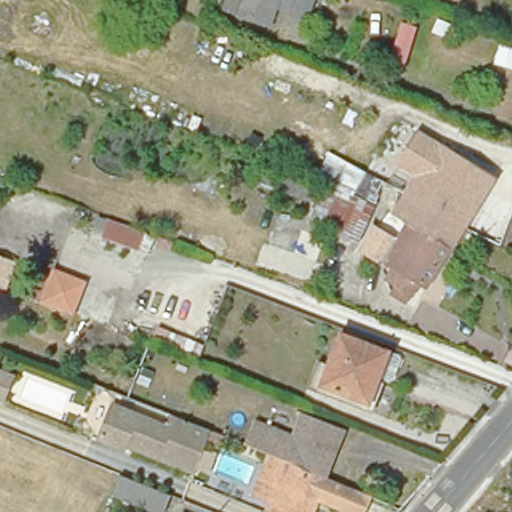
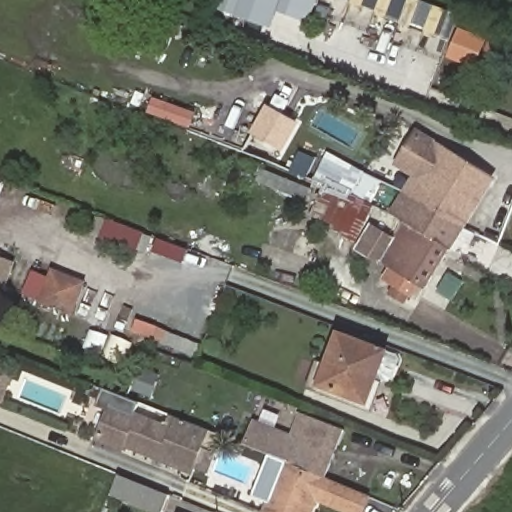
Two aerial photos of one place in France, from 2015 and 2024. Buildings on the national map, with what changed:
unchanged [(274,10),(267,28),(226,12),(231,0),(278,0),(274,10)]
unchanged [(306,22),(274,10),(278,0),(315,0),(306,22)]
new [(284,153),(250,134),(267,104),(301,123),(284,153)]
unchanged [(495,177),(461,228),(417,202),(405,221),(390,212),(412,176),(394,163),(418,129),(495,177)]
unchanged [(385,182),(367,218),(322,201),(332,183),(319,175),(328,152),(385,182)]
unchanged [(366,220),(353,248),(341,243),(344,236),(312,220),(322,201),(366,220)]
unchanged [(461,228),(427,283),(419,278),(407,298),(395,292),(401,283),(389,276),(397,265),(367,244),(384,217),(401,228),(417,202),(461,228)]
unchanged [(138,237),(133,250),(127,249),(120,262),(88,249),(92,236),(81,232),(87,218),(138,237)]
unchanged [(75,286),(65,314),(36,304),(46,275),(75,286)]
unchanged [(385,356),(367,408),(322,390),(319,397),(308,392),(317,367),(327,370),(339,338),(385,356)]
unchanged [(0,398),(0,368),(12,372),(0,398)]
unchanged [(217,467),(192,457),(187,468),(124,443),(122,448),(98,438),(111,405),(166,427),(171,414),(204,427),(201,435),(226,445),(217,467)]
unchanged [(279,457),(274,455),(265,451),(263,451),(261,450),(242,442),(234,439),(218,433),(213,431),(223,407),(244,415),(284,432),(294,407),(340,426),(320,473),(279,457)]
unchanged [(224,486),(242,442),(261,450),(263,451),(265,451),(274,455),(279,457),(320,473),(364,491),(356,511),(311,494),(304,512),(258,512),(244,507),(249,495),(224,486)]
unchanged [(135,512),(108,501),(116,481),(167,502),(163,512),(135,512)]

